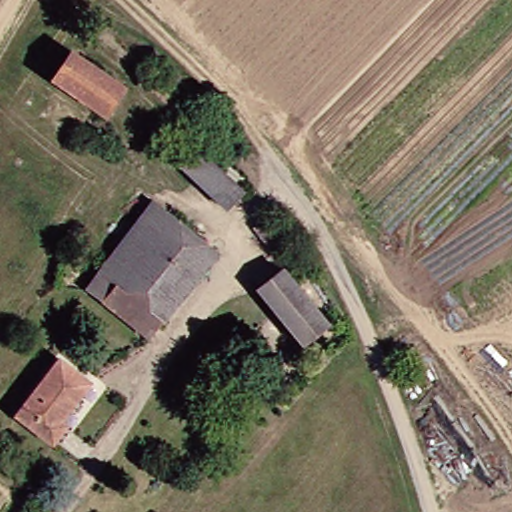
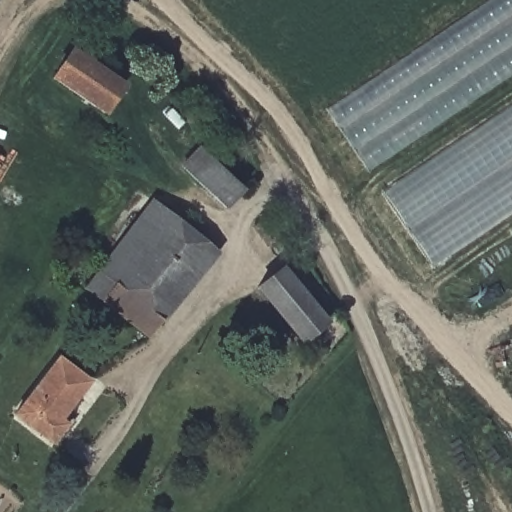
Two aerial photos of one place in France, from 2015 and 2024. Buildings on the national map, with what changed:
new [(512,0),(512,76),(370,171),(327,109),(491,0),(512,0)]
unchanged [(127,82),(109,109),(60,76),(78,49),(127,82)]
new [(512,216),(434,269),(384,193),(512,109),(512,216)]
unchanged [(187,162),(204,144),(242,180),(225,199),(187,162)]
unchanged [(151,332),(88,279),(156,195),(207,236),(153,303),(165,314),(151,332)]
unchanged [(271,231),(260,242),(250,231),(261,221),(271,231)]
unchanged [(207,236),(220,246),(165,314),(153,303),(207,236)]
unchanged [(331,314),(308,334),(263,282),(287,261),(331,314)]
unchanged [(91,379),(62,417),(68,423),(53,440),(17,412),(60,356),(91,379)]

